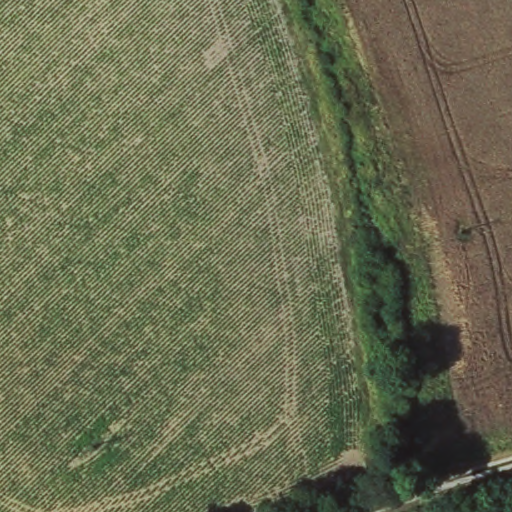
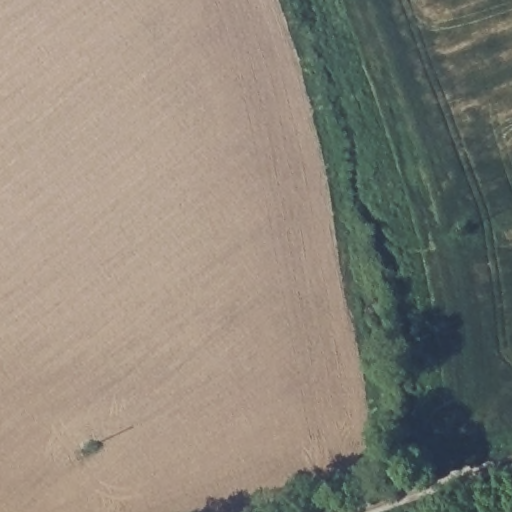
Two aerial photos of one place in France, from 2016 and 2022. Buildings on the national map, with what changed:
[]

